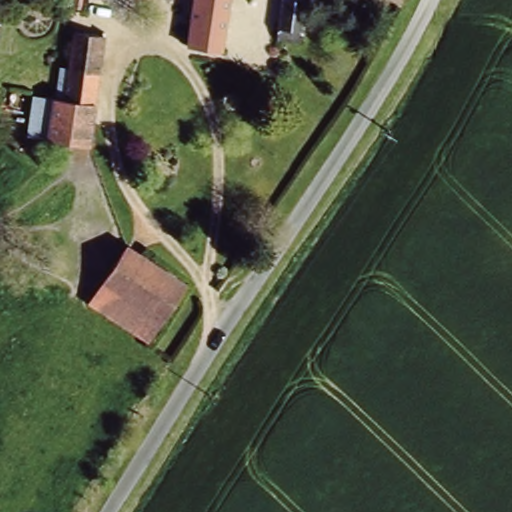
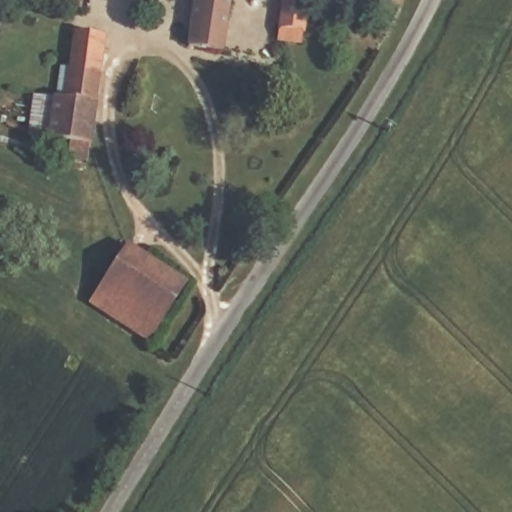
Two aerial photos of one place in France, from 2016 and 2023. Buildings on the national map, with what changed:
unchanged [(189,0),(224,0),(215,46),(181,40),(189,0)]
unchanged [(297,0),(310,2),(302,41),(271,36),(278,0),(297,0)]
unchanged [(63,159),(67,139),(44,139),(50,96),(64,96),(71,27),(107,33),(85,164),(63,159)]
unchanged [(87,299),(127,241),(185,281),(146,341),(87,299)]

